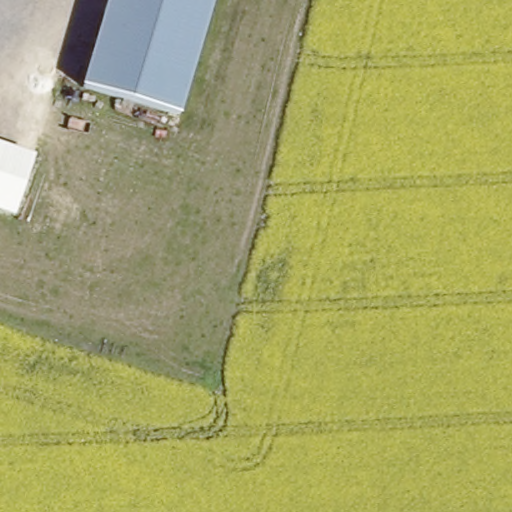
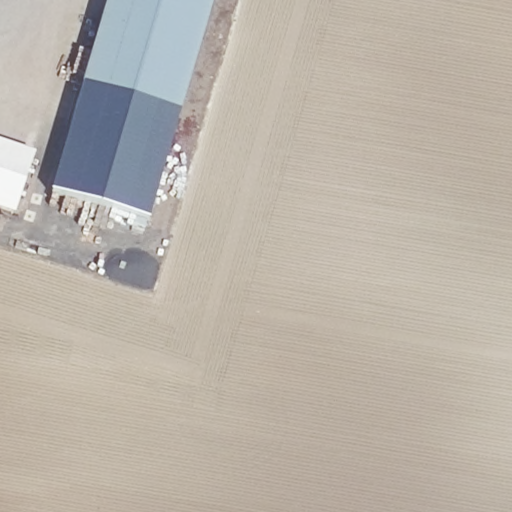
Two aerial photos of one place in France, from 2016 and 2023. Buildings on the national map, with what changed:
unchanged [(109,0),(215,0),(177,115),(82,84),(109,0)]
new [(148,224),(49,195),(82,84),(177,115),(148,224)]
unchanged [(36,147),(15,216),(0,212),(0,136),(36,147)]

